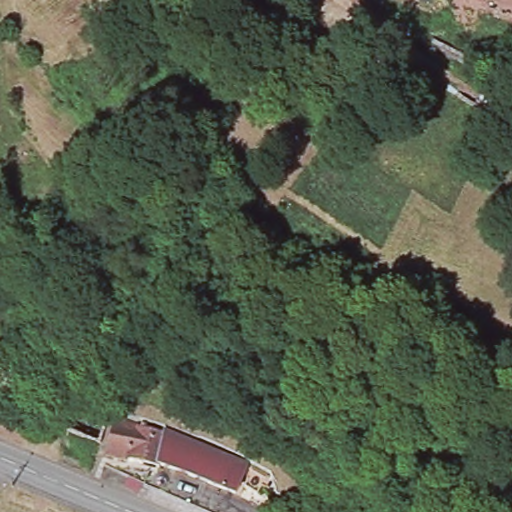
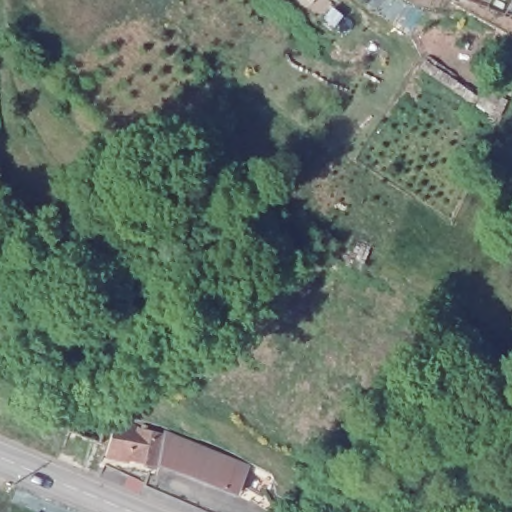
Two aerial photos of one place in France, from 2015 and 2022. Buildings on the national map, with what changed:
unchanged [(75,400),(109,415),(101,439),(67,425),(75,400)]
unchanged [(117,415),(164,429),(247,462),(237,490),(161,460),(160,465),(106,450),(117,415)]

